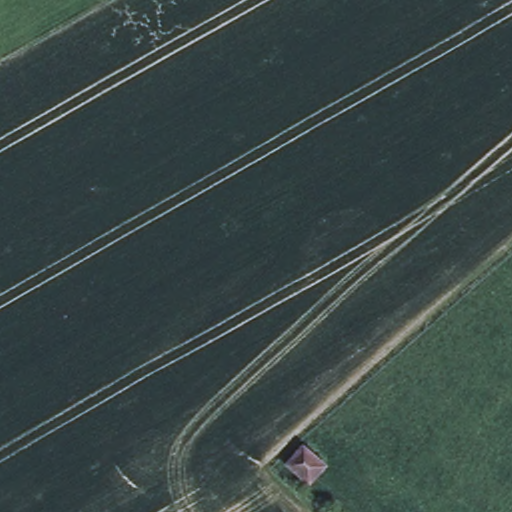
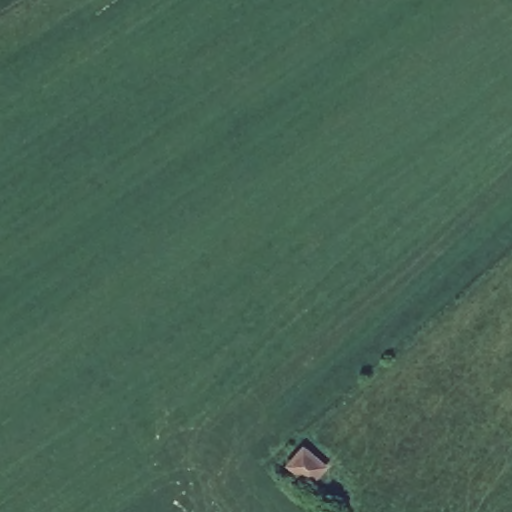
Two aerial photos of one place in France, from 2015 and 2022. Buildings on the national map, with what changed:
unchanged [(332,466),(311,490),(282,466),(306,443),(332,466)]

